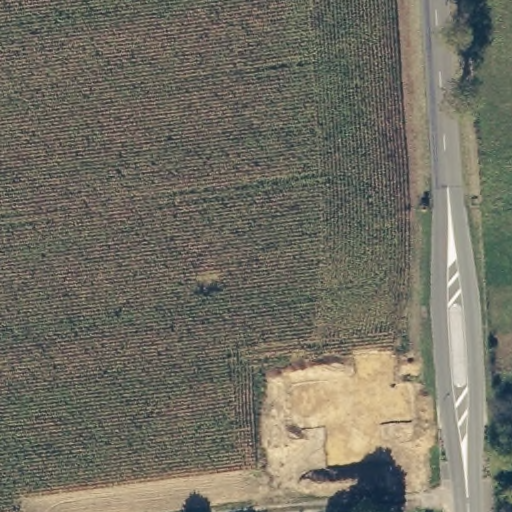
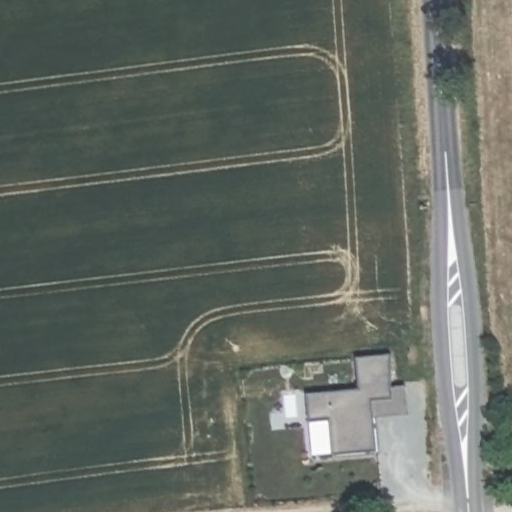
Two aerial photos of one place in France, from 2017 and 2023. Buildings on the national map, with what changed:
new [(362,364),(397,362),(397,394),(411,393),(413,422),(380,424),(382,459),(337,462),(335,426),(315,428),(312,400),(365,396),(362,364)]

